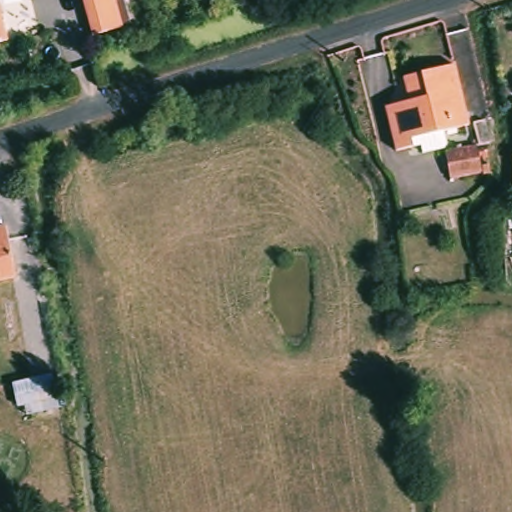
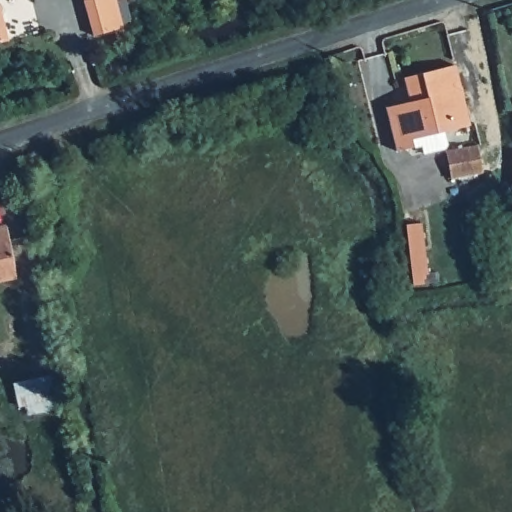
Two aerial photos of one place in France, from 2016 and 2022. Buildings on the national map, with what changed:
unchanged [(91,37),(82,0),(126,0),(130,25),(91,37)]
unchanged [(9,46),(0,49),(0,14),(1,14),(9,46)]
unchanged [(451,67),(465,127),(440,133),(444,147),(440,151),(419,155),(417,147),(393,152),(382,109),(404,104),(398,78),(451,67)]
unchanged [(502,177),(486,182),(489,187),(456,197),(446,157),(479,148),(484,170),(500,164),(502,177)]
unchanged [(0,229),(1,229),(11,279),(0,281),(0,229)]

